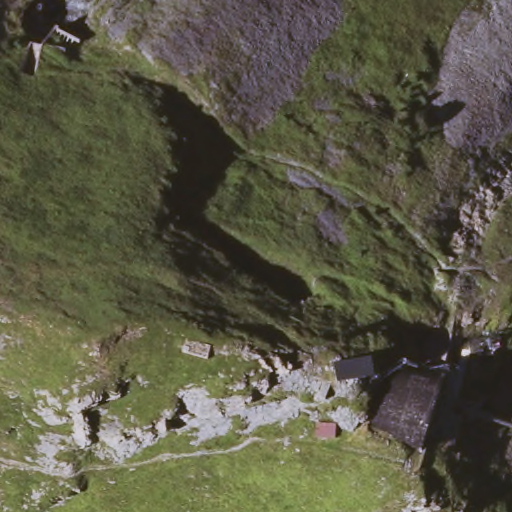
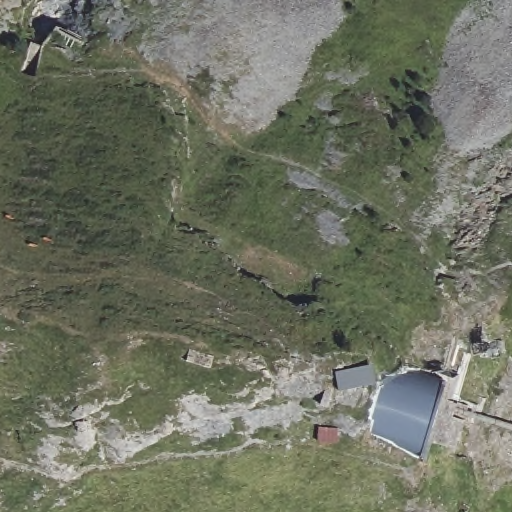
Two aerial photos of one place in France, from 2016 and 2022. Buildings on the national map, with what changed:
unchanged [(377,429),(380,412),(384,397),(388,382),(388,379),(399,377),(427,366),(451,373),(427,457),(377,429)]

